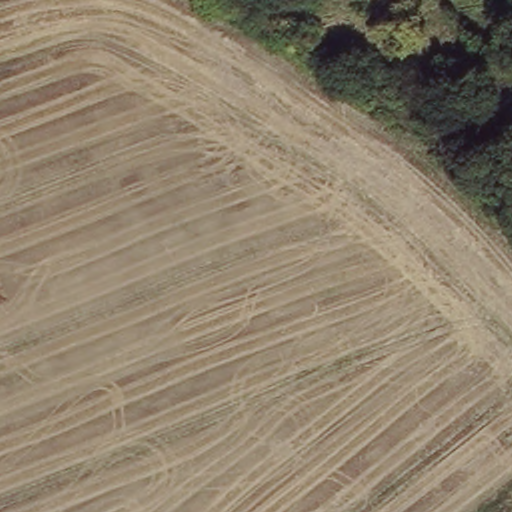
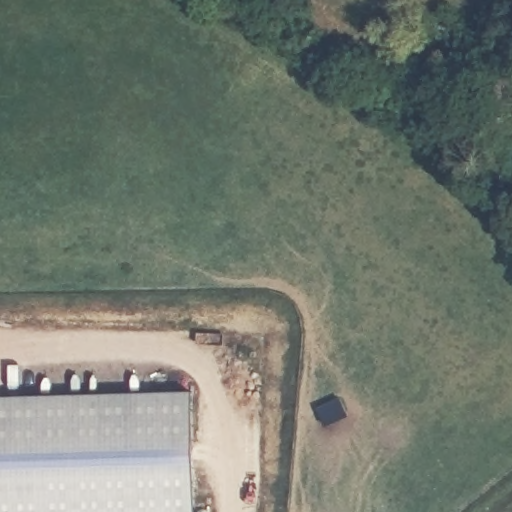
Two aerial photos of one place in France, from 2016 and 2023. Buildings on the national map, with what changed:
new [(197,512),(0,512),(0,401),(195,398),(197,512)]

